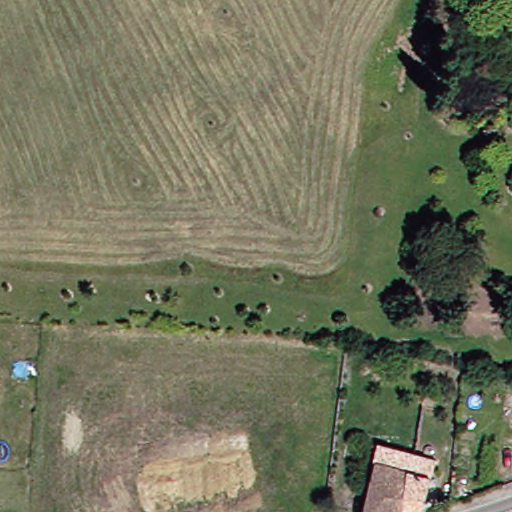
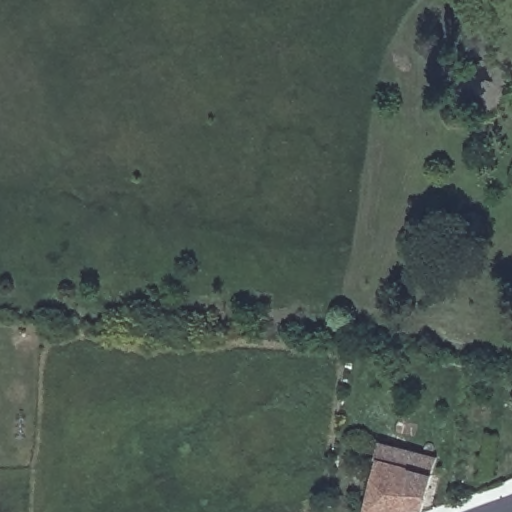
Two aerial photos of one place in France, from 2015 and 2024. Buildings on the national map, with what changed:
unchanged [(442,456),(428,512),(375,512),(390,443),(442,456)]

